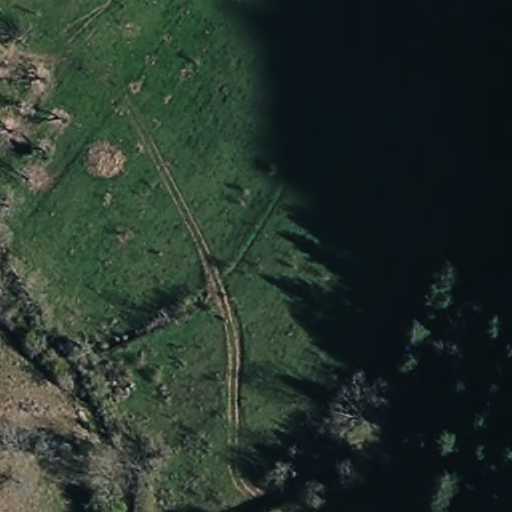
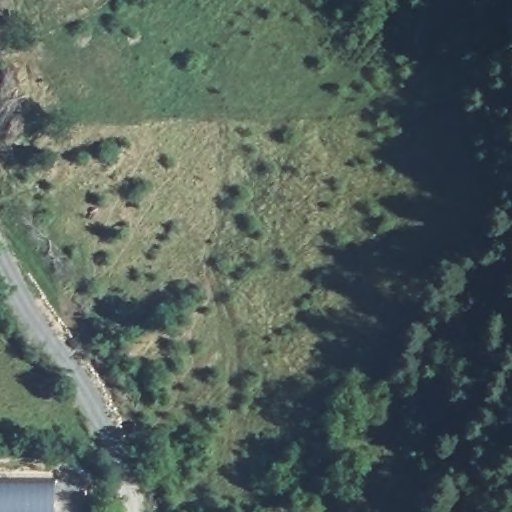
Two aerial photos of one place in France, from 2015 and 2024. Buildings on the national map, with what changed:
new [(55,477),(55,512),(0,512),(0,477),(55,477)]

